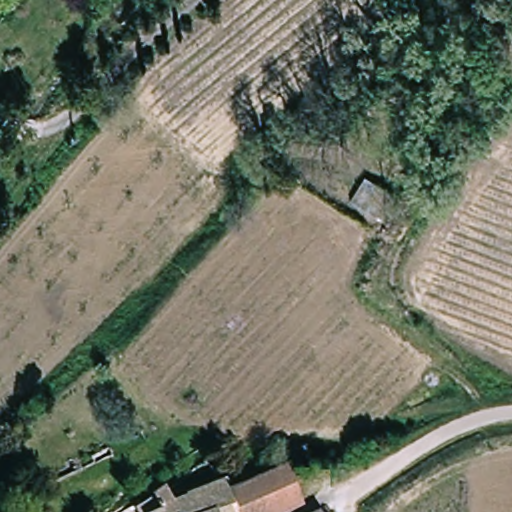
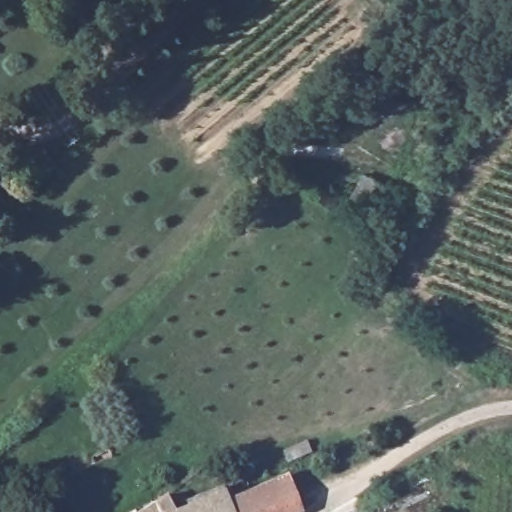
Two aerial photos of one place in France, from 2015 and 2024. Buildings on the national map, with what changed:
unchanged [(193,510),(191,505),(230,487),(239,498),(295,472),(312,505),(299,512),(191,512),(193,510)]
unchanged [(157,503),(161,503),(171,497),(182,512),(163,512),(157,503)]

